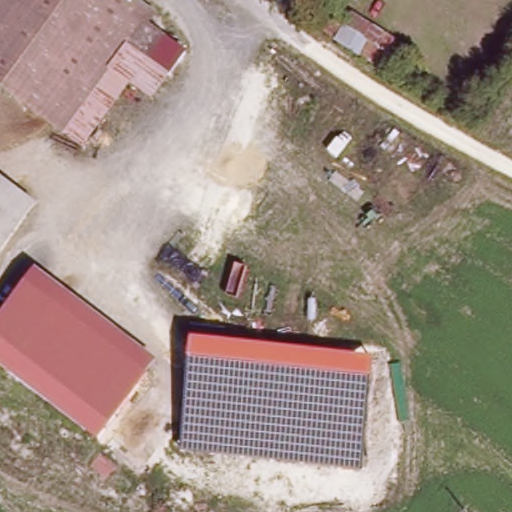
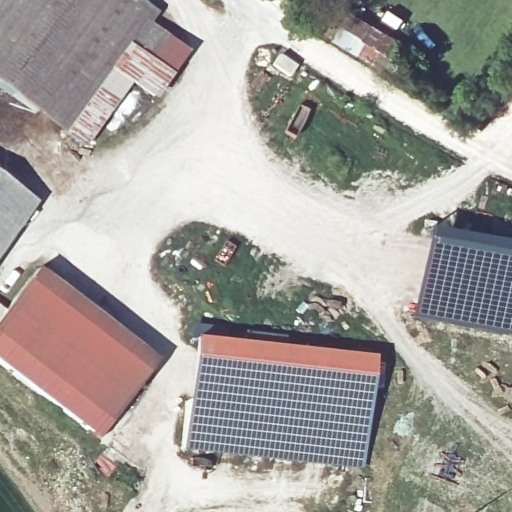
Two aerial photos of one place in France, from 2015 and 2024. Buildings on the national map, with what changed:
unchanged [(156,15),(149,26),(69,135),(0,86),(0,0),(135,0),(156,15)]
unchanged [(317,32),(325,22),(345,33),(354,23),(402,54),(388,77),(317,32)]
unchanged [(149,26),(167,39),(150,65),(169,79),(152,102),(129,86),(84,146),(69,135),(149,26)]
unchanged [(29,204),(0,244),(0,183),(29,204)]
new [(512,246),(512,336),(410,318),(423,230),(512,246)]
unchanged [(35,276),(150,364),(98,429),(0,353),(0,321),(35,276)]
unchanged [(373,361),(362,466),(184,448),(194,342),(373,361)]

